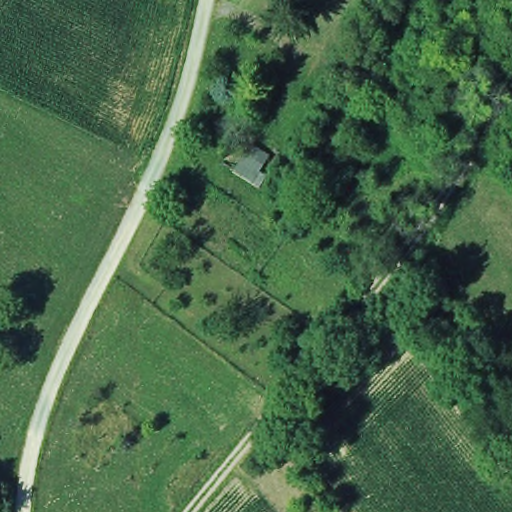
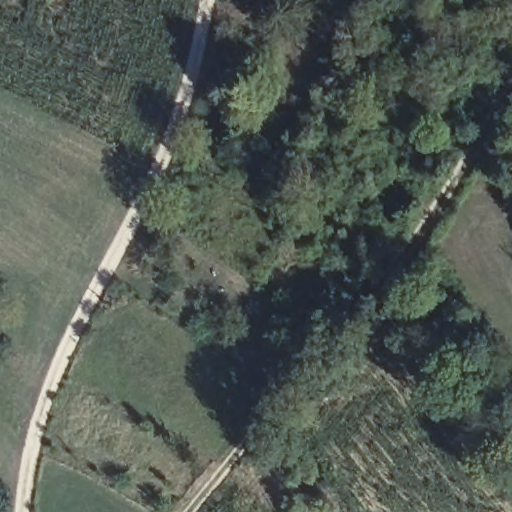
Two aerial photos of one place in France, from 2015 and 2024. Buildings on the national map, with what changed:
unchanged [(230,175),(252,145),(275,159),(253,187),(230,175)]

